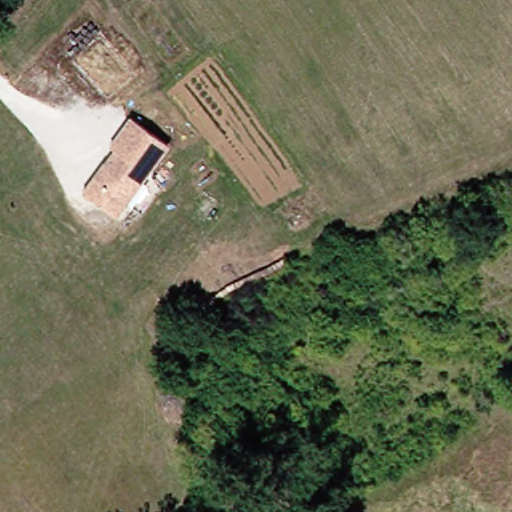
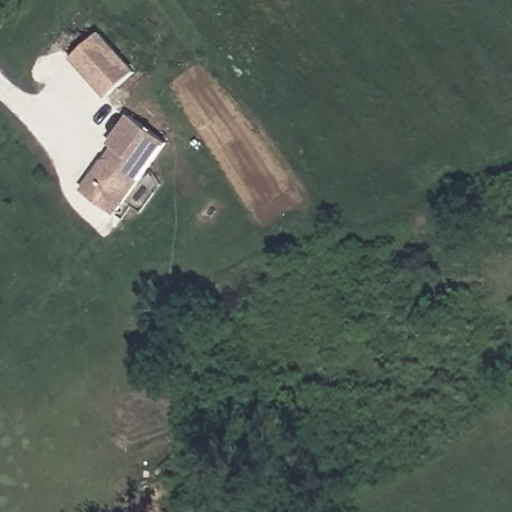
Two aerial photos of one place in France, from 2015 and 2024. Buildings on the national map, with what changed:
new [(71,60),(100,34),(135,74),(107,99),(71,60)]
unchanged [(78,184),(89,175),(104,159),(116,146),(139,121),(168,148),(118,203),(105,190),(95,200),(78,184)]

